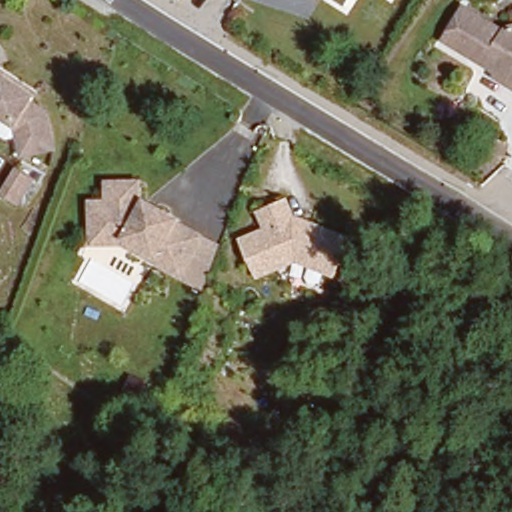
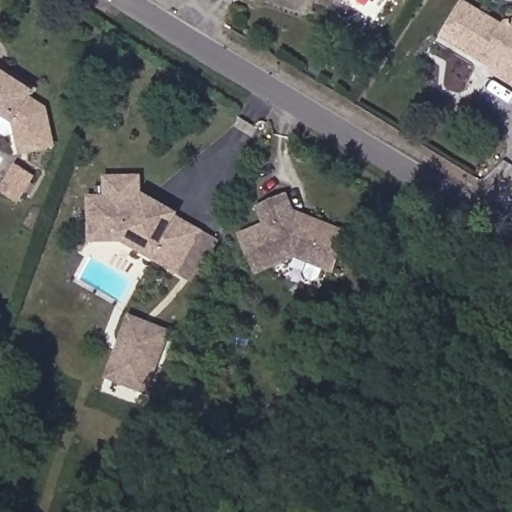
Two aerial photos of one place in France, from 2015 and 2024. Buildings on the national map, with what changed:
unchanged [(337,2),(333,0),(338,0),(337,2)]
unchanged [(470,1),(507,24),(512,21),(512,89),(499,81),(501,71),(484,61),(447,37),(470,1)]
unchanged [(2,74),(5,68),(34,84),(32,92),(44,97),(56,138),(23,148),(17,122),(0,113),(0,73),(2,74)]
unchanged [(87,221),(86,192),(103,191),(104,165),(140,165),(140,185),(155,184),(202,212),(209,217),(183,257),(125,227),(106,229),(87,230),(87,221)]
unchanged [(39,178),(20,205),(0,192),(19,167),(39,178)]
unchanged [(260,207),(285,192),(295,208),(352,213),(349,251),(300,248),(264,270),(244,241),(270,224),(260,207)]
new [(177,334),(151,398),(108,382),(133,317),(177,334)]

